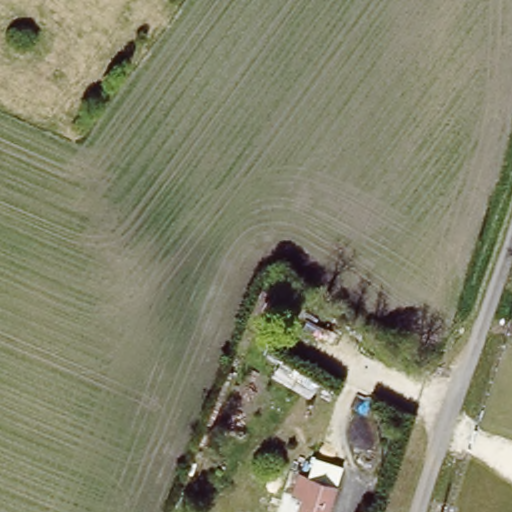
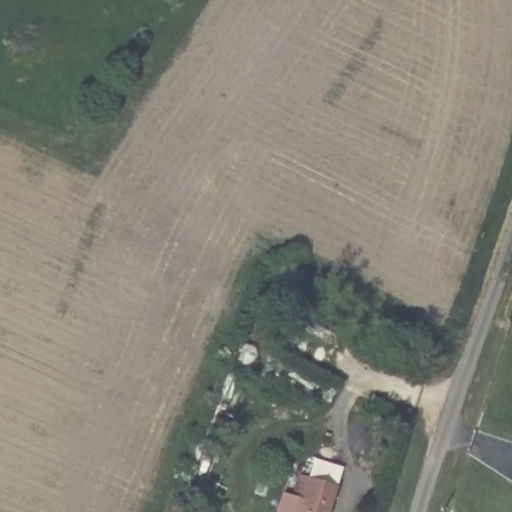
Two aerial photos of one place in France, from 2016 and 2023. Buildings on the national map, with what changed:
unchanged [(330,512),(301,512),(302,507),(289,502),(297,478),(336,493),(330,512)]

